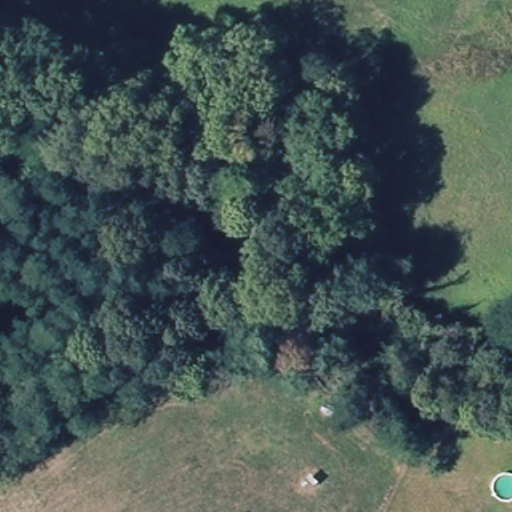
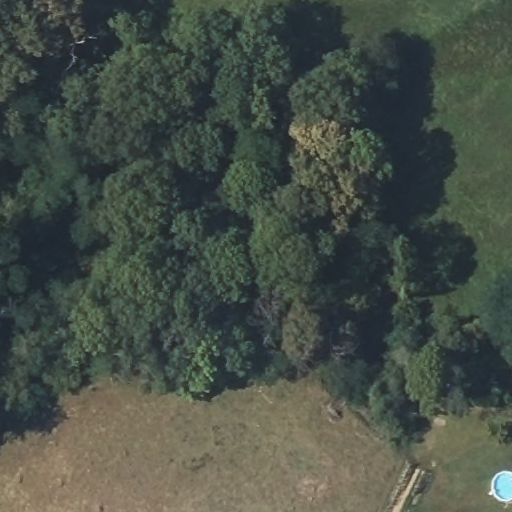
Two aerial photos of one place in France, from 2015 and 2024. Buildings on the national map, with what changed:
[]

